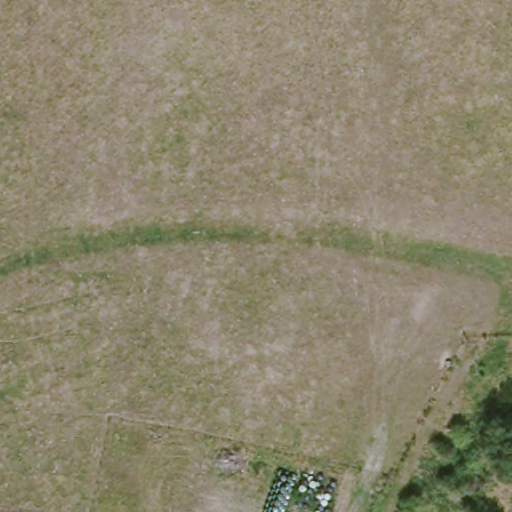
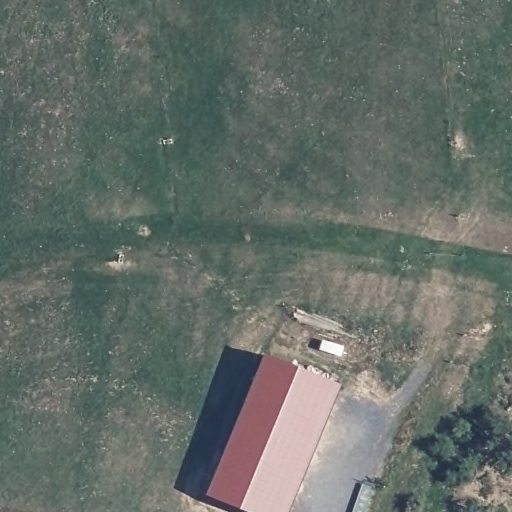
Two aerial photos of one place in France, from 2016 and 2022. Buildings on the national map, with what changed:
new [(205,494),(263,353),(339,384),(287,512),(250,512),(205,494)]

